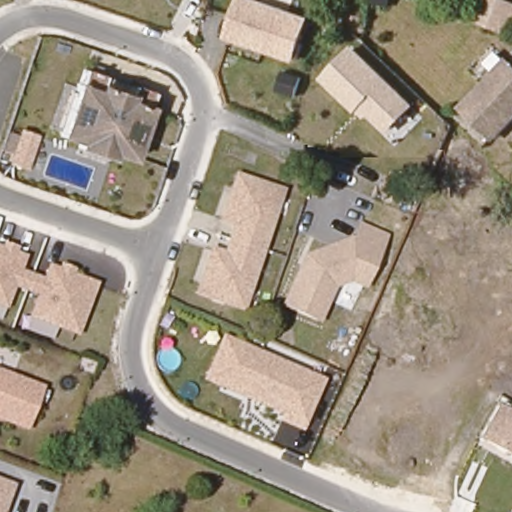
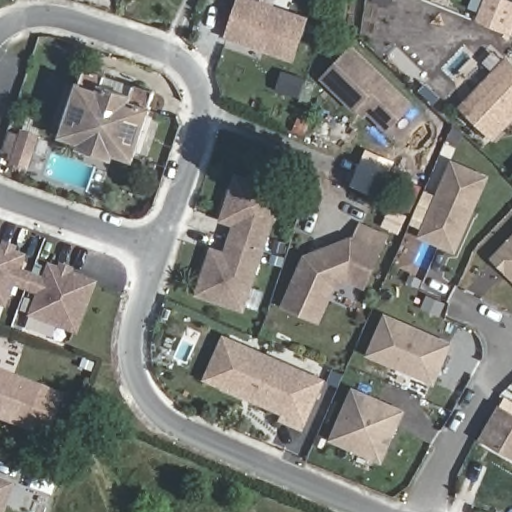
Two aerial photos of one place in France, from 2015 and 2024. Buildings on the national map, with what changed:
unchanged [(294,61),(225,37),(238,0),(256,0),(309,17),(294,61)]
unchanged [(480,20),(488,0),(506,0),(512,2),(512,32),(480,20)]
unchanged [(415,104),(388,131),(370,114),(361,120),(317,79),(352,45),(415,104)]
unchanged [(508,63),(512,66),(512,114),(494,133),(467,105),(508,63)]
unchanged [(121,155),(119,163),(83,149),(85,144),(65,136),(84,88),(89,74),(159,98),(154,113),(137,161),(121,155)]
unchanged [(30,169),(9,164),(20,129),(40,135),(30,169)]
new [(455,254),(416,238),(451,160),(488,176),(455,254)]
unchanged [(286,187),(244,312),(192,296),(210,247),(224,251),(232,226),(217,222),(235,173),(286,187)]
unchanged [(367,289),(348,283),(334,288),(320,323),(281,309),(302,254),(353,238),(356,224),(387,235),(367,289)]
new [(489,258),(512,234),(512,280),(489,258)]
unchanged [(28,318),(37,296),(15,290),(9,309),(0,306),(0,246),(1,246),(4,242),(20,247),(18,252),(27,255),(21,270),(42,276),(47,264),(60,269),(61,263),(78,269),(76,274),(99,282),(80,335),(28,318)]
new [(366,356),(384,314),(452,343),(435,386),(366,356)]
unchanged [(304,432),(278,422),(281,414),(202,382),(221,335),(326,379),(304,432)]
unchanged [(0,372),(40,388),(25,428),(0,418),(0,372)]
new [(381,464),(328,441),(350,387),(405,410),(381,464)]
unchanged [(488,431),(499,412),(512,419),(512,457),(503,453),(482,442),(488,431)]
unchanged [(5,512),(0,512),(0,481),(15,487),(5,512)]

